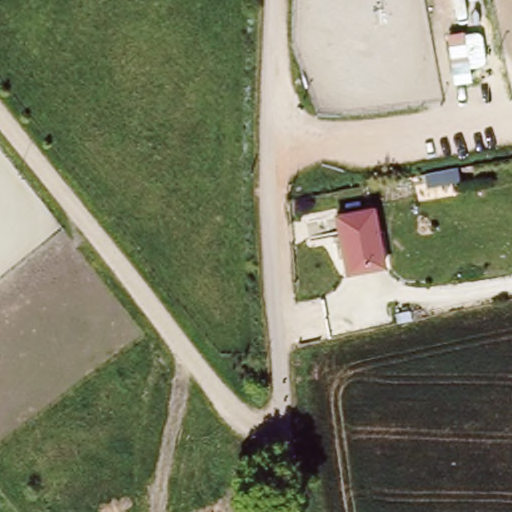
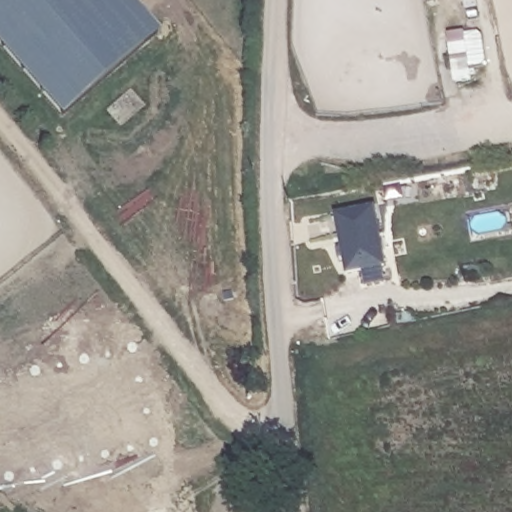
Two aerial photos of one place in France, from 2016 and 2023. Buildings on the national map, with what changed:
new [(0,46),(0,0),(134,0),(161,30),(61,117),(0,46)]
demolished [(457,180),(415,189),(416,196),(381,203),(378,184),(456,169),(457,180)]
unchanged [(370,231),(378,229),(380,244),(373,247),(377,263),(340,270),(330,214),(365,207),(370,231)]

